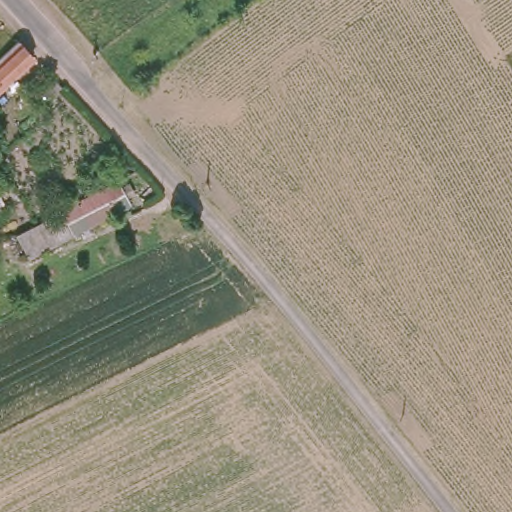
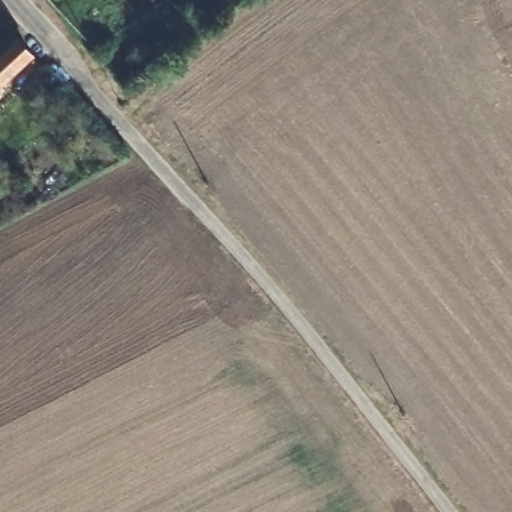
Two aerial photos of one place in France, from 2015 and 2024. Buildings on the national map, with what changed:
unchanged [(34,56),(0,86),(0,57),(20,40),(34,56)]

